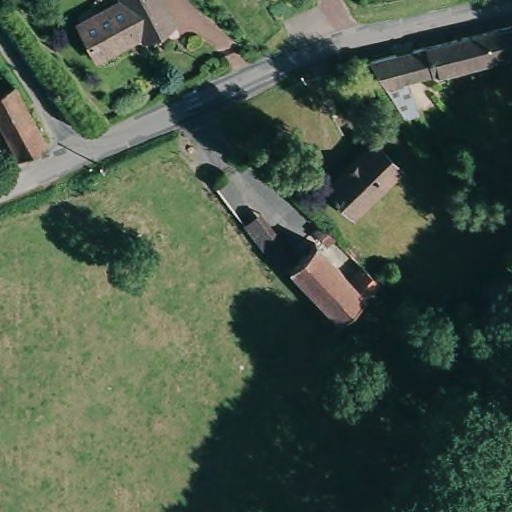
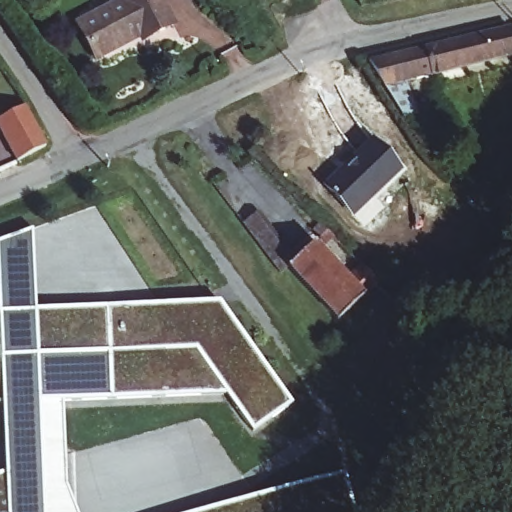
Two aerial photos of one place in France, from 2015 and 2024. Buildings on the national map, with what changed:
unchanged [(162,0),(175,22),(147,37),(143,30),(100,53),(82,20),(120,0),(162,0)]
unchanged [(417,84),(422,88),(416,92),(433,112),(424,120),(422,117),(408,128),(358,71),(505,24),(506,29),(512,46),(512,55),(502,58),(417,84)]
unchanged [(20,167),(0,116),(0,101),(27,91),(55,155),(20,167)]
unchanged [(328,184),(378,139),(405,170),(353,215),(328,184)]
new [(300,256),(315,242),(349,277),(360,265),(377,284),(365,293),(336,320),(287,268),(279,274),(242,224),(260,211),(300,256)]
demolished [(298,256),(315,239),(352,276),(357,271),(320,235),(322,233),(315,225),(320,220),(333,232),(358,257),(384,281),(347,321),(290,265),(280,275),(265,258),(262,255),(280,237),(298,256)]
new [(35,311),(110,307),(219,302),(292,402),(253,430),(226,392),(111,397),(61,400),(64,484),(76,512),(0,512),(0,474),(6,472),(2,403),(0,403),(0,243),(32,230),(35,311)]
new [(343,472),(353,512),(199,512),(343,472)]

